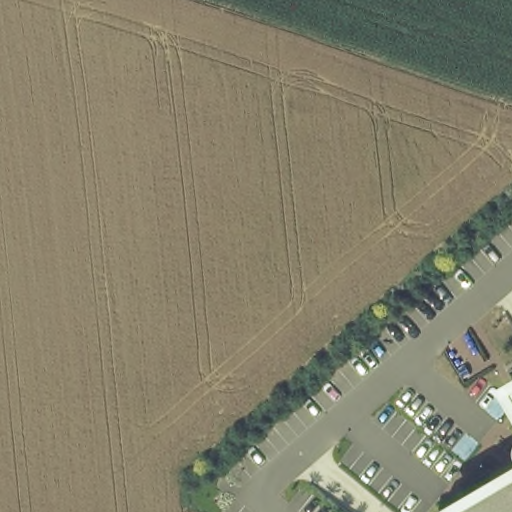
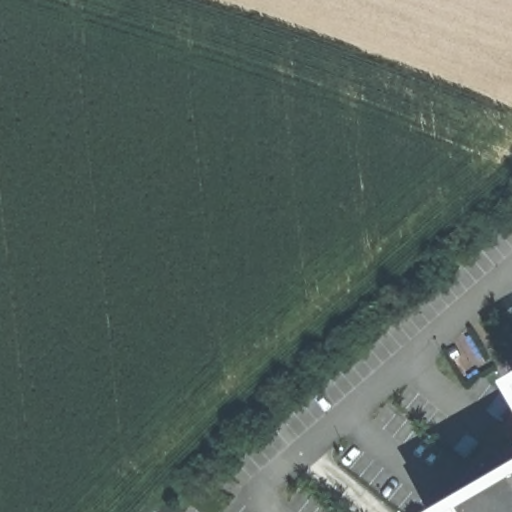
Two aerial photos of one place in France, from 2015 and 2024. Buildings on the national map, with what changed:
unchanged [(512,379),(512,398),(503,383),(512,379)]
unchanged [(512,512),(435,512),(512,466),(512,512)]

